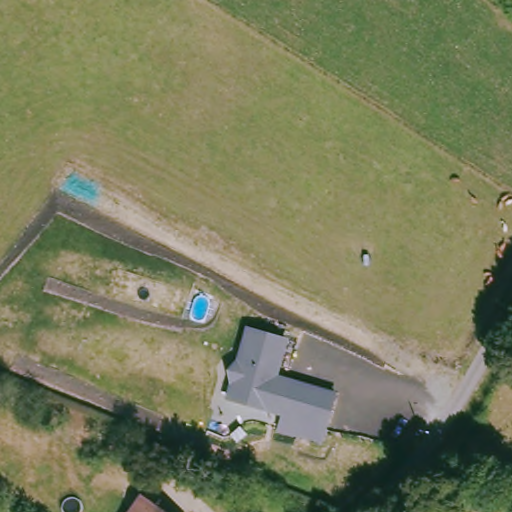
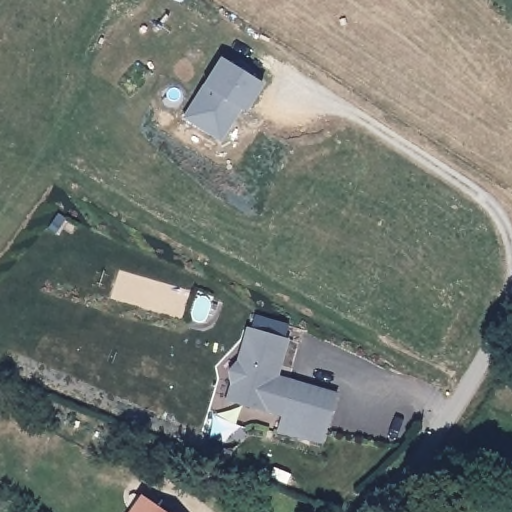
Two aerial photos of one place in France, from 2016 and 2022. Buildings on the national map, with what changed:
new [(220,57),(264,83),(246,112),(241,109),(222,139),(184,115),(203,84),(220,57)]
unchanged [(289,335),(278,373),(336,389),(321,440),(276,428),(280,412),(223,399),(244,324),(289,335)]
unchanged [(142,498),(162,512),(133,512),(142,498)]

